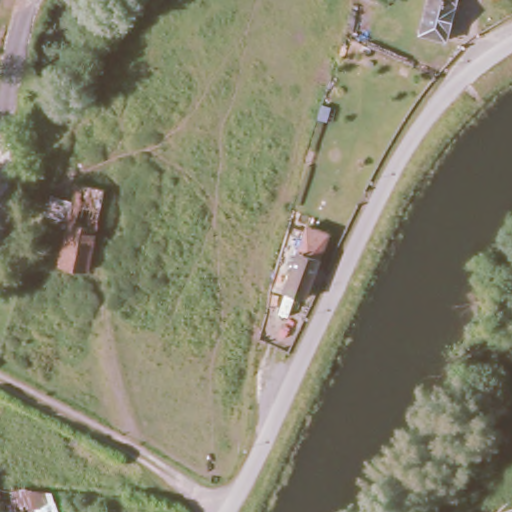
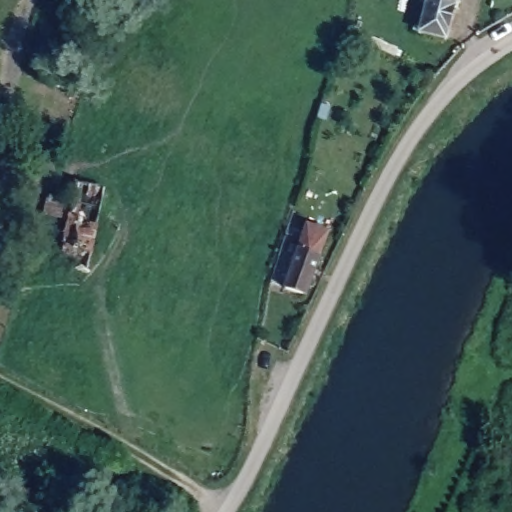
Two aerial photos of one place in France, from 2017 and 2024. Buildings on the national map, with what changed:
unchanged [(413,28),(421,0),(451,0),(440,36),(413,28)]
unchanged [(81,182),(106,188),(90,267),(64,262),(81,182)]
unchanged [(333,222),(327,236),(331,238),(310,296),(301,292),(293,312),(274,305),(298,208),(333,222)]
unchanged [(39,483),(44,493),(54,489),(62,512),(3,512),(0,500),(0,498),(39,483)]

